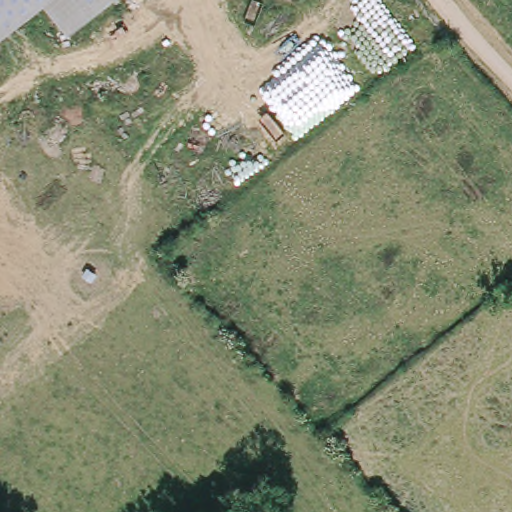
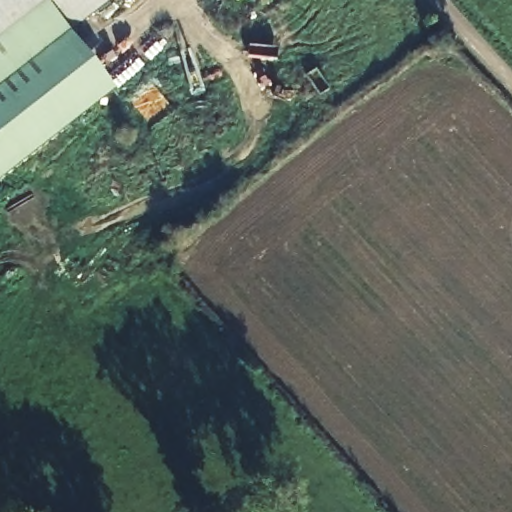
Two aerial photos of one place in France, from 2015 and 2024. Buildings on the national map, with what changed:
unchanged [(68,35),(45,2),(0,38),(0,0),(112,0),(68,35)]
new [(113,90),(0,179),(0,38),(45,2),(68,35),(113,90)]

